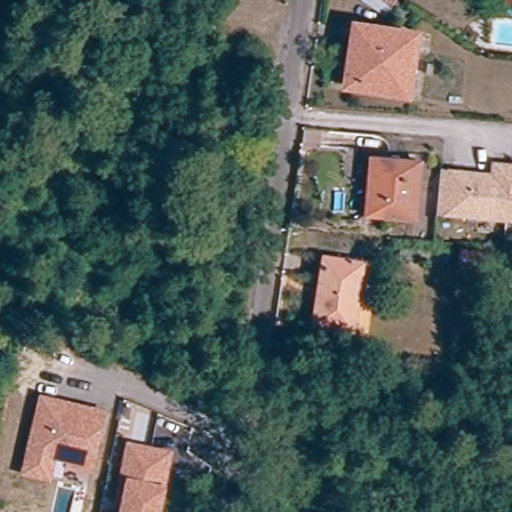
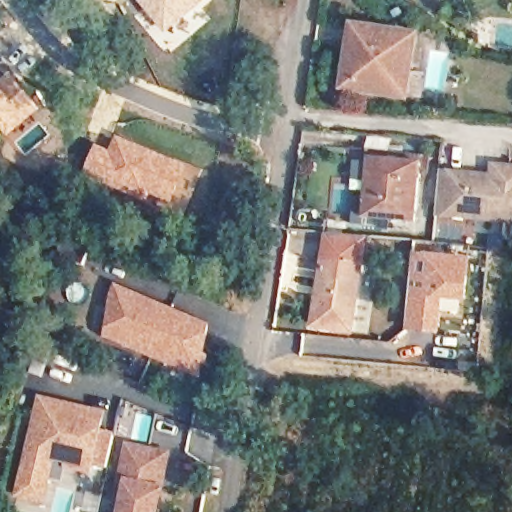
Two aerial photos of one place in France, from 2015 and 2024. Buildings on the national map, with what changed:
new [(163,30),(138,0),(207,0),(163,30)]
unchanged [(385,17),(361,1),(363,0),(397,0),(385,17)]
unchanged [(417,37),(408,98),(349,89),(359,28),(417,37)]
new [(5,62),(0,66),(0,56),(5,62)]
new [(11,74),(42,110),(10,137),(4,130),(0,134),(0,85),(11,74)]
new [(183,165),(179,174),(184,176),(174,201),(150,191),(147,199),(85,173),(96,145),(111,151),(117,135),(183,165)]
unchanged [(421,165),(416,222),(365,218),(370,160),(421,165)]
unchanged [(497,168),(512,169),(512,222),(441,216),(444,175),(496,179),(497,168)]
unchanged [(485,252),(484,267),(460,265),(461,250),(485,252)]
unchanged [(353,330),(318,323),(328,261),(363,267),(353,330)]
new [(213,324),(203,378),(104,338),(115,282),(213,324)]
unchanged [(92,473),(63,470),(62,480),(51,476),(51,483),(20,476),(37,395),(107,410),(92,473)]
unchanged [(119,472),(126,441),(174,450),(162,512),(118,512),(125,475),(119,472)]

